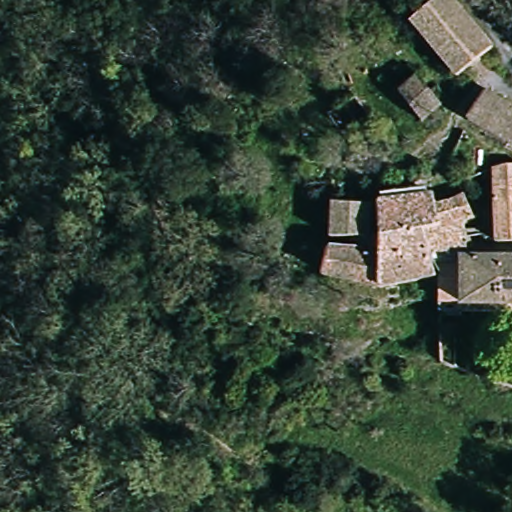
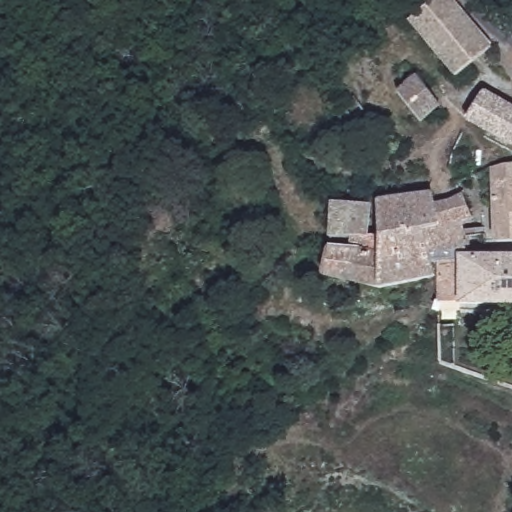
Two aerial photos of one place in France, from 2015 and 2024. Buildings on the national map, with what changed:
unchanged [(434,0),(453,0),(492,48),(455,76),(412,19),(434,0)]
unchanged [(415,121),(396,90),(405,85),(395,70),(408,62),(437,107),(415,121)]
unchanged [(364,141),(337,100),(350,93),(377,132),(364,141)]
unchanged [(483,96),(512,113),(512,148),(469,121),(483,96)]
unchanged [(512,164),(512,242),(497,242),(495,170),(495,166),(512,164)]
unchanged [(436,305),(374,289),(319,273),(321,268),(325,246),(349,249),(350,238),(326,234),(331,203),(368,203),(365,233),(380,234),(379,203),(430,198),(432,206),(462,199),(468,223),(462,224),(465,239),(465,251),(429,256),(430,259),(436,305)]
unchanged [(460,307),(436,305),(430,259),(460,260),(460,307)]
unchanged [(512,263),(512,310),(460,307),(460,260),(512,263)]

